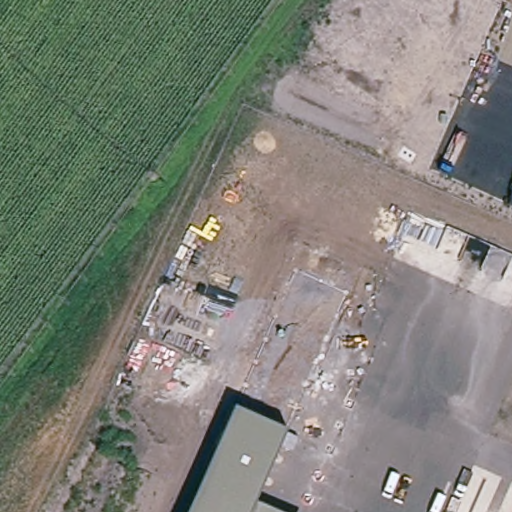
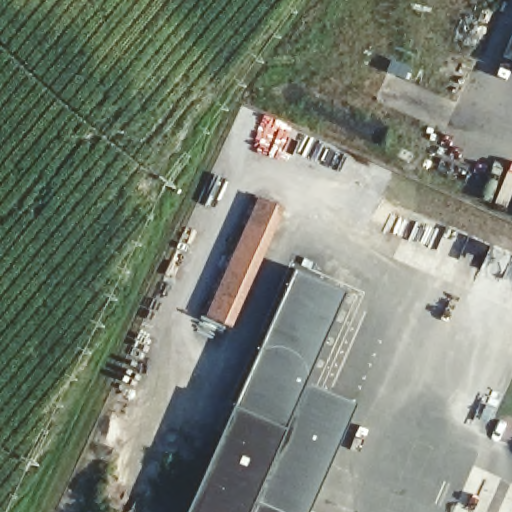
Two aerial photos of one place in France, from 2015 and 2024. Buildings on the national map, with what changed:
new [(208,315),(260,197),(284,208),(232,326),(208,315)]
new [(287,429),(234,406),(295,270),(347,292),(307,382),(356,405),(311,512),(273,512),(255,503),(287,429)]
unchanged [(287,429),(255,503),(251,512),(187,512),(234,406),(287,429)]
unchanged [(273,512),(251,512),(255,503),(273,512)]

